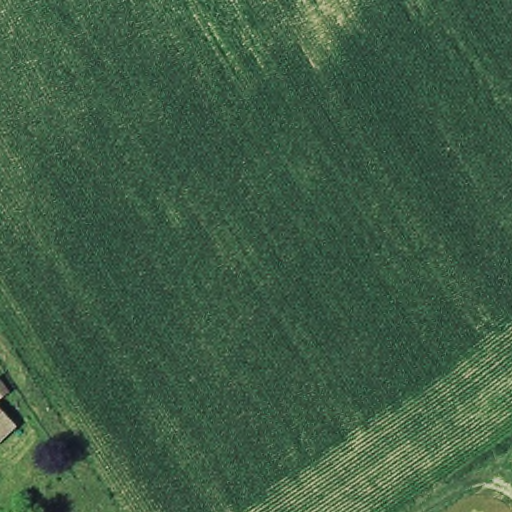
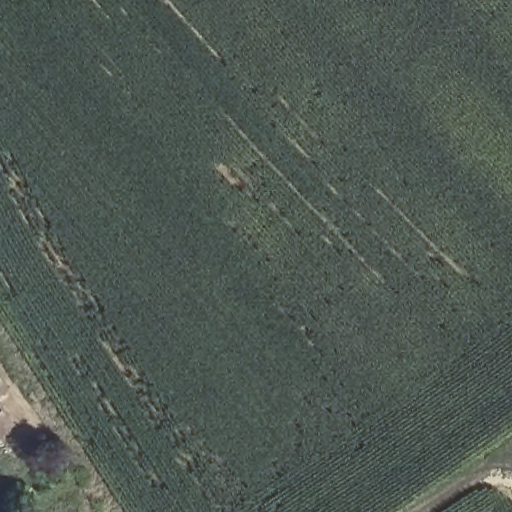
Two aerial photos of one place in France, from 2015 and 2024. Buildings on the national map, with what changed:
unchanged [(15,423),(0,434),(0,408),(15,423)]

